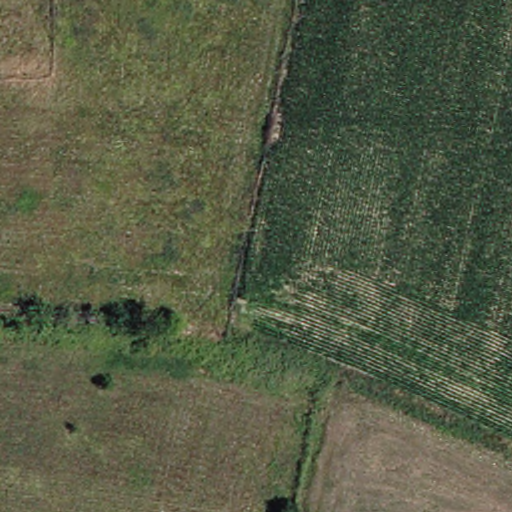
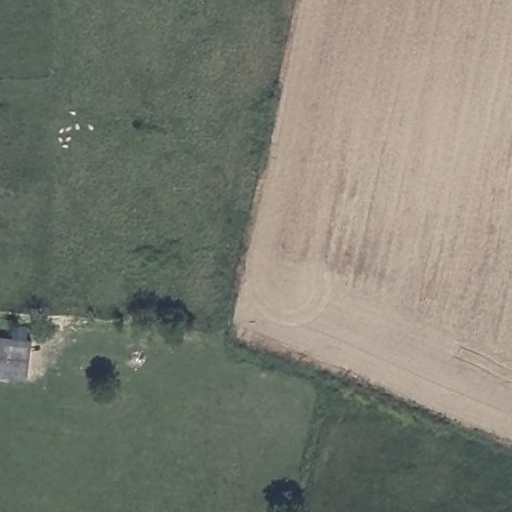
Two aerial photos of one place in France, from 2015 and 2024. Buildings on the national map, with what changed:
new [(31,380),(0,376),(0,337),(35,341),(33,361),(31,380)]

